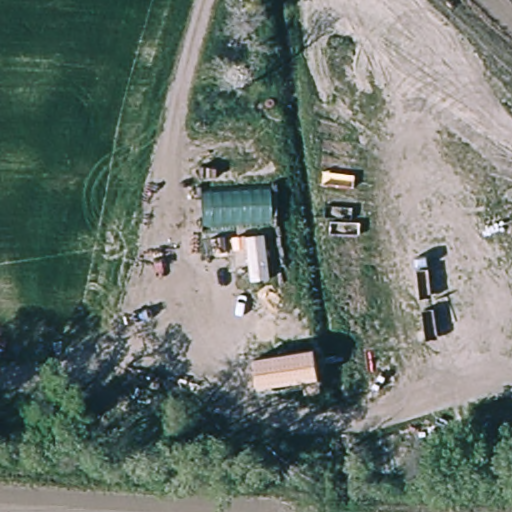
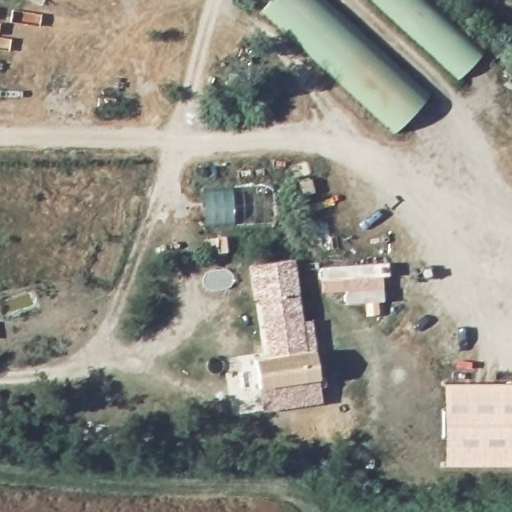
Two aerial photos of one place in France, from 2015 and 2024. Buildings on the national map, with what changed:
new [(395,130),(263,9),(271,0),(321,0),(428,95),(395,130)]
new [(428,0),(485,51),(458,80),(371,0),(428,0)]
new [(271,186),(273,222),(204,226),(202,192),(271,186)]
new [(301,353),(267,356),(258,298),(252,300),(247,265),(294,259),(302,321),(311,319),(313,350),(301,353)]
new [(343,291),(322,292),(322,280),(317,278),(315,275),(316,270),(321,267),(388,263),(389,277),(382,277),(383,302),(343,304),(343,291)]
new [(313,350),(318,380),(322,404),(261,412),(256,384),(304,380),(301,353),(313,350)]
unchanged [(253,357),(301,353),(304,380),(256,384),(253,357)]
new [(442,382),(512,382),(512,466),(442,466),(442,382)]

